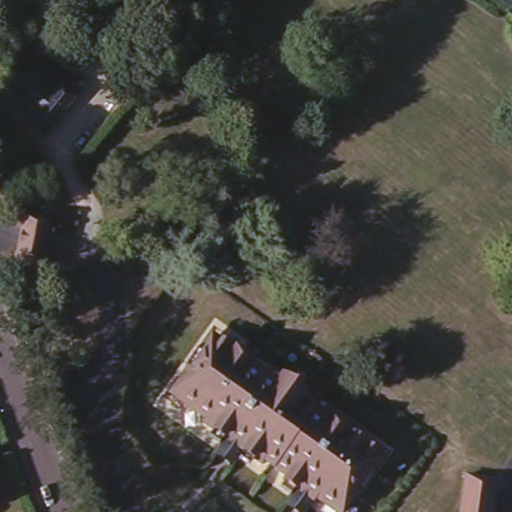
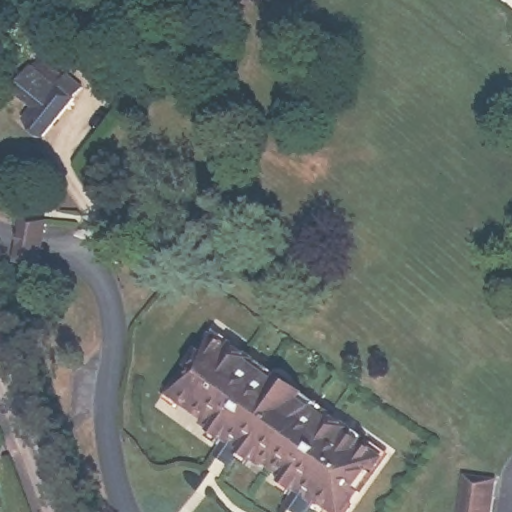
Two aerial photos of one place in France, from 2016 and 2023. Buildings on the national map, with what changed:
unchanged [(34,65),(60,85),(69,71),(86,85),(49,134),(35,123),(37,121),(31,116),(38,107),(16,90),(34,65)]
unchanged [(26,210),(42,212),(39,263),(22,261),(26,210)]
unchanged [(297,490),(283,480),(287,475),(266,459),(262,464),(240,448),(230,462),(217,453),(227,440),(204,422),(207,417),(175,395),(216,337),(232,348),(234,345),(254,358),(251,362),(280,383),(282,380),(304,395),(302,399),(330,420),(332,415),(355,431),(352,435),(377,453),(337,511),(317,495),(313,501),(311,500),(302,512),(300,512),(287,503),(297,490)]
unchanged [(495,477),(490,512),(460,512),(465,474),(495,477)]

